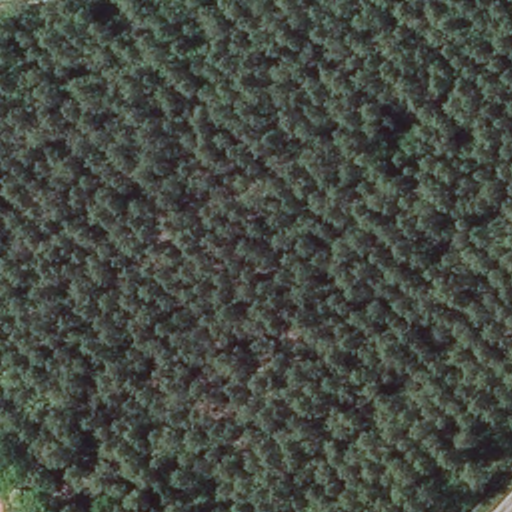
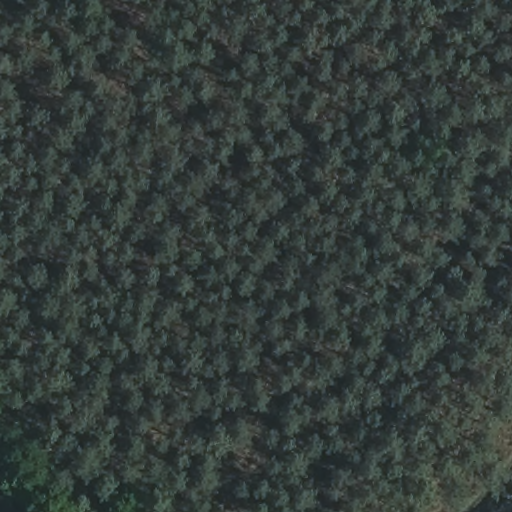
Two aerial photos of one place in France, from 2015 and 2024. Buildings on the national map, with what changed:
[]

